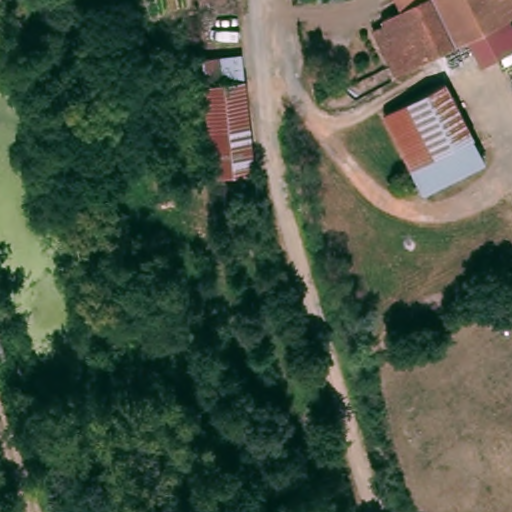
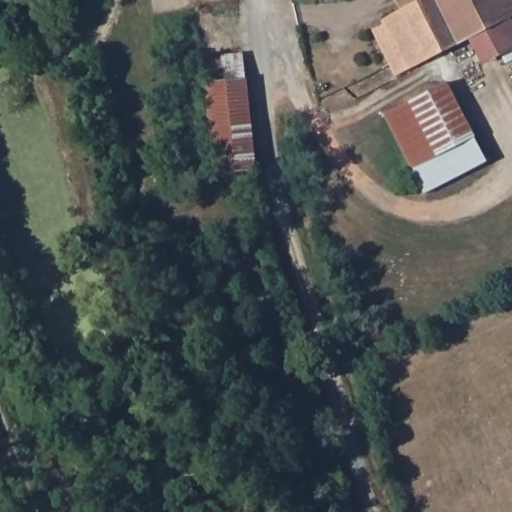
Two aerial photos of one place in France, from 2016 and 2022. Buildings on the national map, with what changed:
unchanged [(393,77),(387,65),(369,31),(381,25),(379,20),(397,11),(391,0),(512,0),(512,18),(393,77)]
unchanged [(196,56),(236,52),(239,77),(199,82),(196,56)]
unchanged [(210,173),(199,82),(239,77),(250,169),(210,173)]
unchanged [(482,160),(422,190),(382,112),(443,82),(482,160)]

